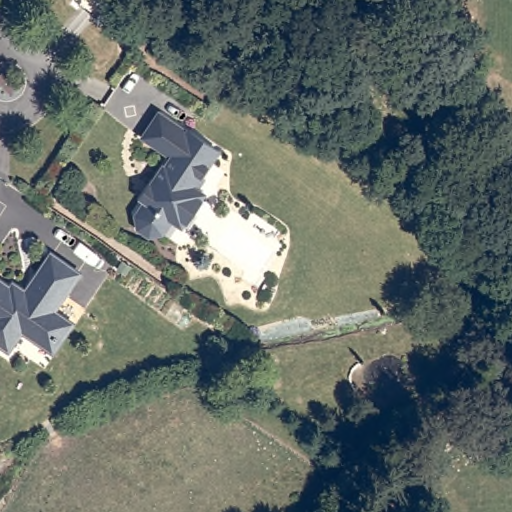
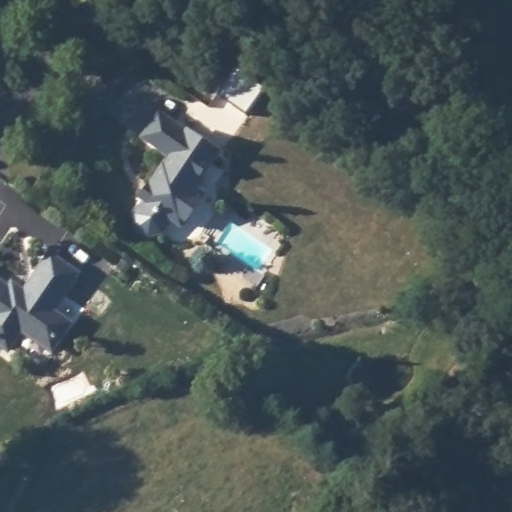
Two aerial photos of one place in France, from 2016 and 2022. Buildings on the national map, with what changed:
unchanged [(177,228),(169,225),(161,238),(148,241),(135,238),(130,220),(141,206),(136,202),(146,187),(156,172),(161,175),(169,162),(142,141),(157,118),(185,136),(187,132),(216,151),(200,176),(206,180),(198,193),(205,198),(198,209),(184,231),(177,228)]
unchanged [(38,338),(25,330),(11,350),(0,342),(0,280),(11,288),(15,282),(31,290),(53,255),(82,273),(57,310),(75,321),(64,338),(57,350),(38,338)]
unchanged [(1,272),(0,274),(0,272),(1,272)]

